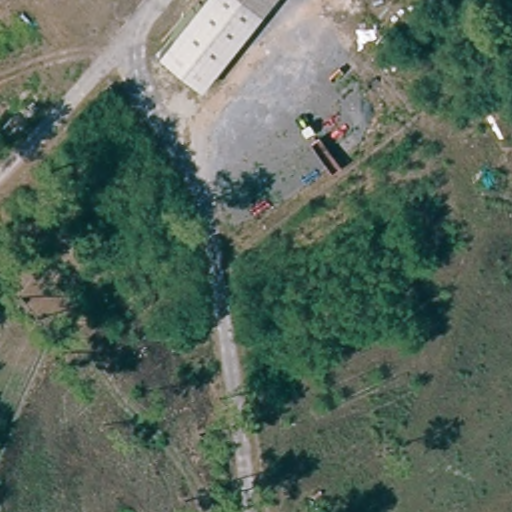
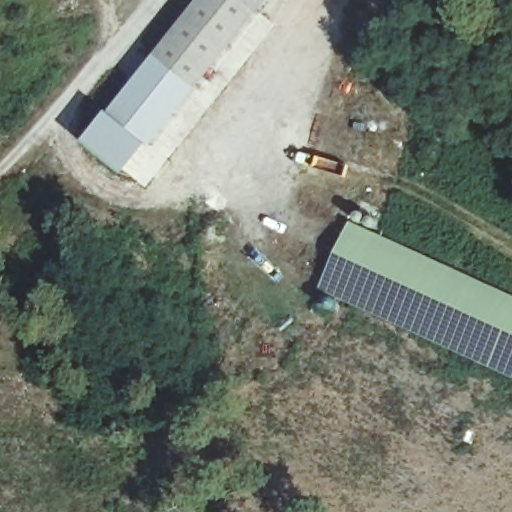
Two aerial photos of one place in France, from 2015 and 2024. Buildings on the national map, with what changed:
unchanged [(200,0),(272,0),(201,89),(157,54),(200,0)]
new [(201,89),(154,146),(130,176),(87,141),(110,113),(157,54),(201,89)]
new [(349,226),(512,301),(512,372),(323,284),(331,265),(340,247),(349,226)]

